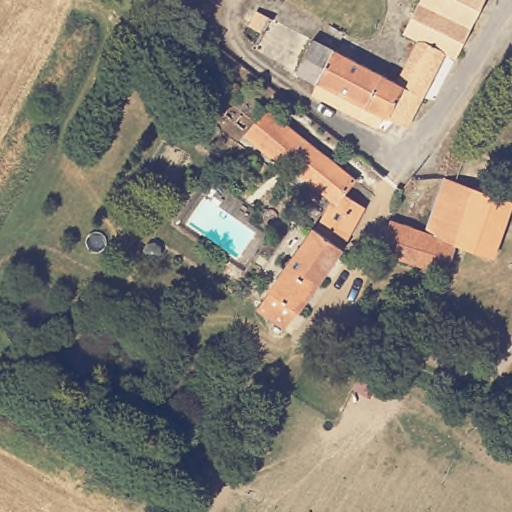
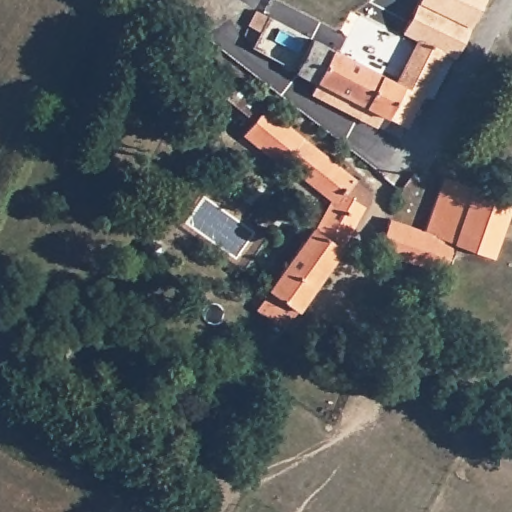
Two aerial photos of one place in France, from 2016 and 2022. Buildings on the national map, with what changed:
unchanged [(317,81),(295,70),(311,37),(396,78),(417,36),(403,29),(417,0),(481,0),(455,55),(443,50),(422,95),(407,125),(381,112),(376,124),(312,90),(317,81)]
unchanged [(255,14),(267,20),(258,35),(247,29),(255,14)]
unchanged [(339,203),(317,185),(288,163),(285,165),(247,133),(258,123),(216,85),(227,74),(324,151),(363,175),(350,195),(374,212),(289,330),(263,310),(339,203)]
unchanged [(422,233),(442,179),(475,190),(456,242),(444,275),(380,254),(388,221),(422,233)]
unchanged [(339,203),(263,310),(251,300),(309,221),(298,212),(317,185),(339,203)]

